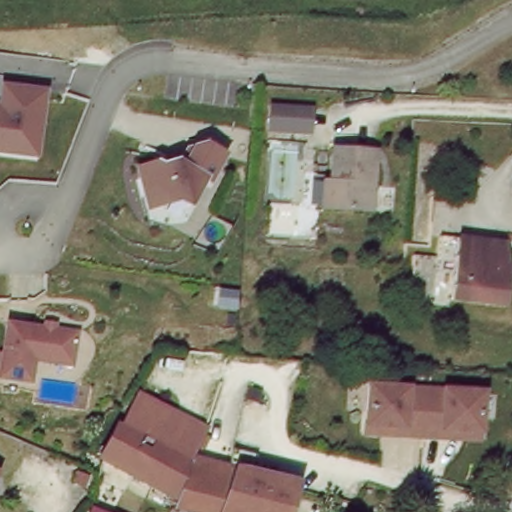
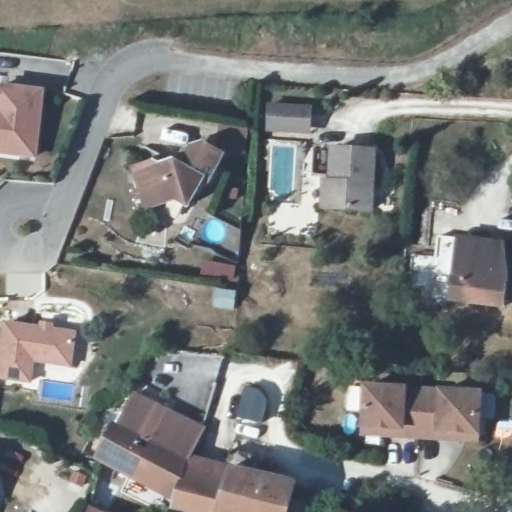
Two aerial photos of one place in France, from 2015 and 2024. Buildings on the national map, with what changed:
unchanged [(49,91),(42,156),(0,153),(0,103),(2,104),(3,86),(49,91)]
unchanged [(318,106),(318,137),(272,135),(272,103),(318,106)]
unchanged [(173,158),(186,161),(198,140),(226,154),(197,213),(182,206),(150,214),(136,168),(173,158)]
unchanged [(323,184),(331,184),(332,151),(374,153),(371,211),(329,209),(322,208),(323,184)]
unchanged [(506,273),(512,273),(512,304),(455,300),(457,274),(439,272),(441,239),(508,245),(506,273)]
unchanged [(82,329),(79,368),(38,366),(36,383),(0,380),(0,367),(6,321),(82,329)]
unchanged [(365,438),(368,384),(487,392),(484,444),(365,438)]
unchanged [(209,424),(196,456),(236,467),(301,484),(294,512),(181,512),(177,511),(179,498),(104,462),(137,391),(209,424)]

